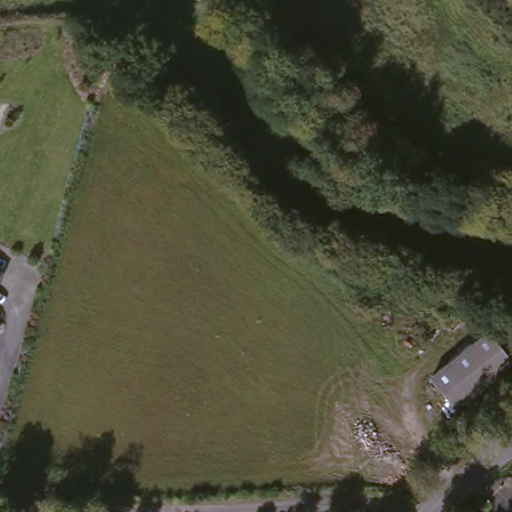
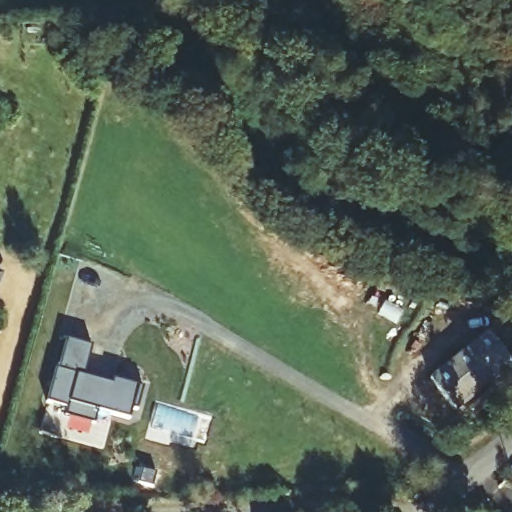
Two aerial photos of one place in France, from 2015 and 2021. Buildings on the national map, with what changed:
unchanged [(6,270),(0,282),(0,267),(6,270)]
unchanged [(484,333),(509,367),(454,412),(428,378),(484,333)]
new [(51,370),(54,371),(63,341),(92,348),(79,379),(109,386),(111,382),(141,392),(134,415),(129,414),(126,423),(92,415),(87,428),(58,418),(60,410),(40,404),(51,370)]

